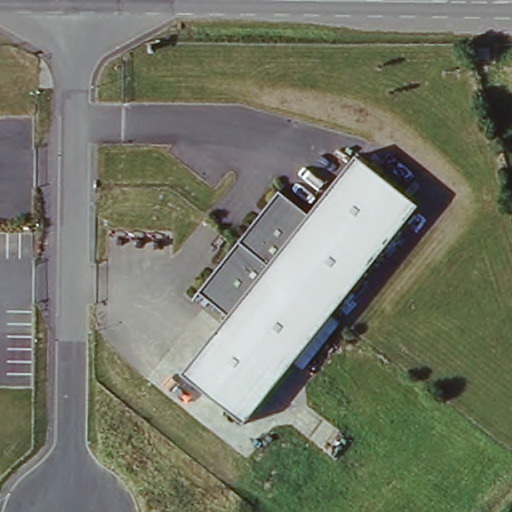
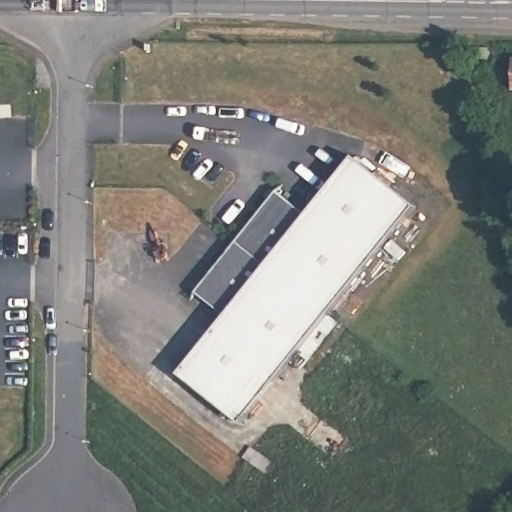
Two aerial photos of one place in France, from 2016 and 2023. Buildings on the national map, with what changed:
unchanged [(417,210),(244,425),(183,375),(229,319),(197,292),(279,192),(309,216),(356,161),(417,210)]

